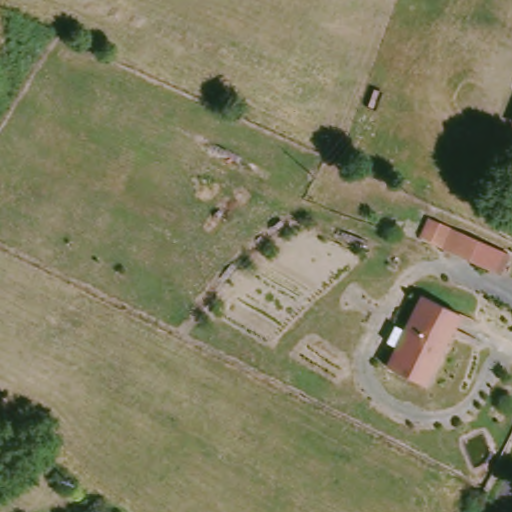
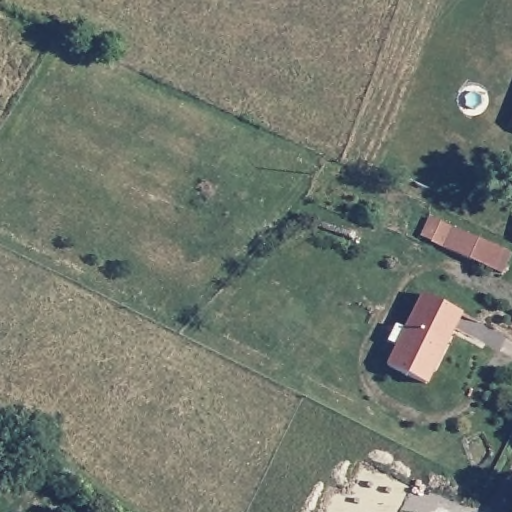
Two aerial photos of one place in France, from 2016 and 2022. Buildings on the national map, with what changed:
unchanged [(511,253),(501,275),(418,240),(430,216),(454,227),(511,253)]
unchanged [(461,312),(427,383),(389,365),(423,294),(461,312)]

